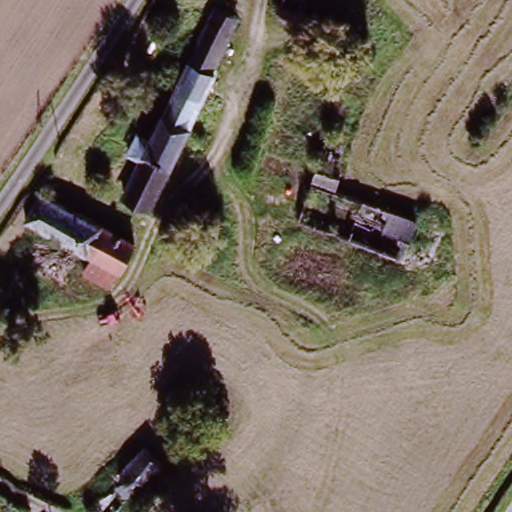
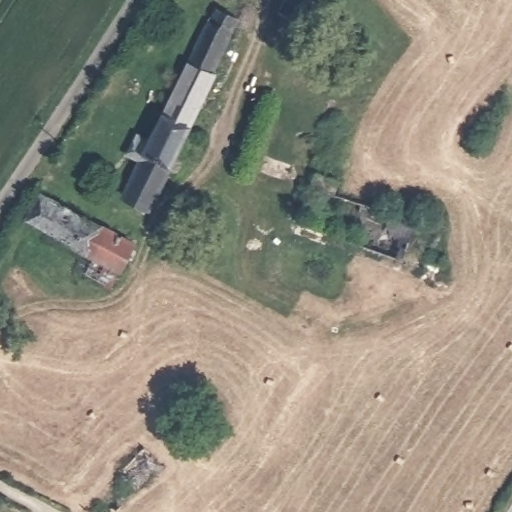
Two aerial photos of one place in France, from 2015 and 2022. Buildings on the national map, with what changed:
unchanged [(305,0),(295,20),(280,11),(286,0),(305,0)]
unchanged [(125,159),(135,140),(147,146),(215,14),(233,23),(205,77),(214,82),(147,212),(121,199),(138,166),(125,159)]
unchanged [(26,223),(42,197),(137,251),(115,292),(85,275),(92,262),(26,223)]
unchanged [(144,452),(160,467),(113,512),(85,512),(84,511),(144,452)]

